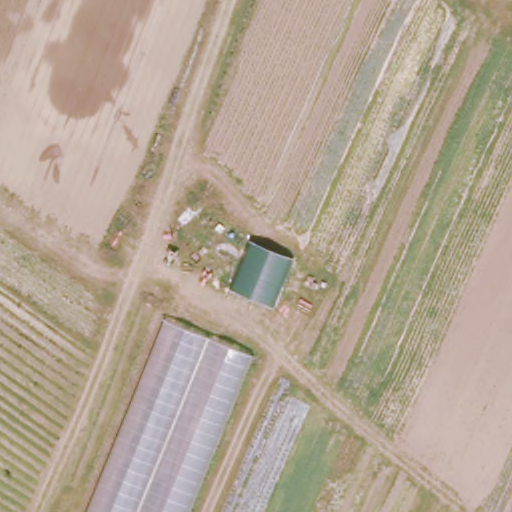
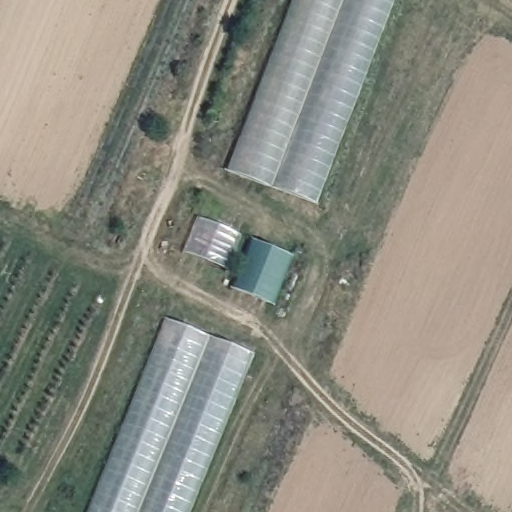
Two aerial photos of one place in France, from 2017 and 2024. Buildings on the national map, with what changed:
new [(395,0),(315,209),(225,174),(290,0),(395,0)]
new [(290,257),(269,305),(253,299),(252,293),(238,290),(257,243),(272,250),(290,257)]
unchanged [(167,318),(258,355),(190,512),(86,512),(167,318)]

